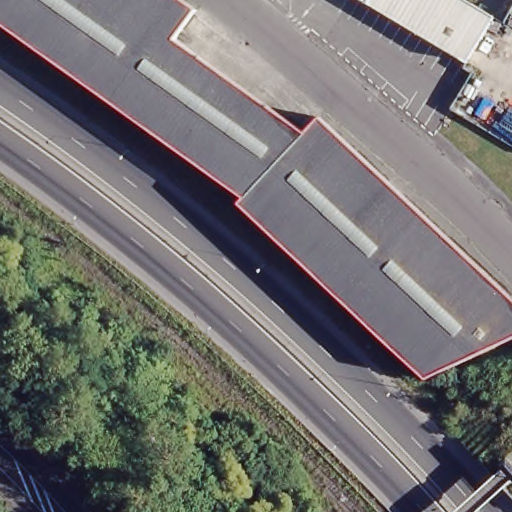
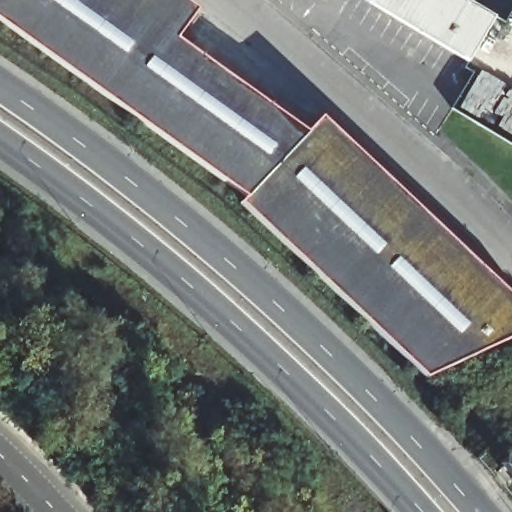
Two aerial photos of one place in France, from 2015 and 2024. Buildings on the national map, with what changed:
unchanged [(180,43),(309,136),(325,120),(512,296),(512,341),(429,380),(241,204),(246,198),(0,19),(0,0),(183,0),(200,14),(180,43)]
unchanged [(395,2),(392,0),(396,0),(395,2)]
unchanged [(512,23),(494,57),(395,2),(396,0),(498,0),(512,8),(512,23)]

